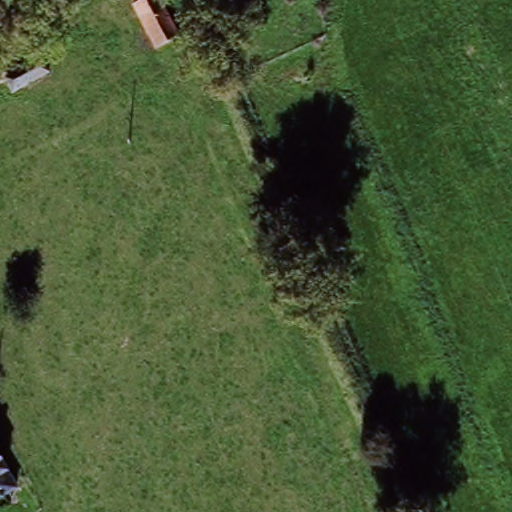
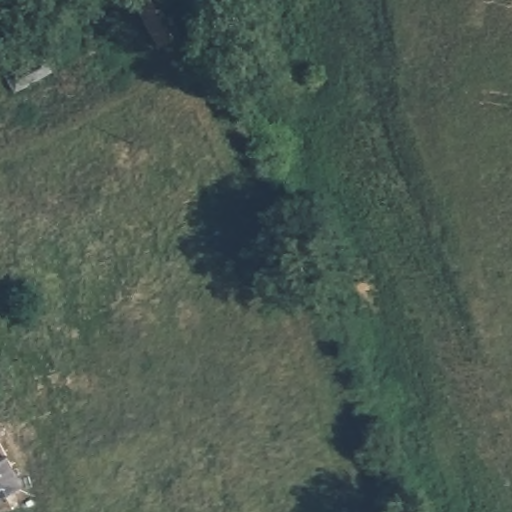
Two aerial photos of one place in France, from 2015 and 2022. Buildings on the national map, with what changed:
unchanged [(160,0),(178,38),(156,49),(134,5),(144,0),(160,0)]
unchanged [(13,81),(49,64),(55,76),(19,92),(13,81)]
unchanged [(0,510),(0,449),(25,495),(11,503),(0,510)]

